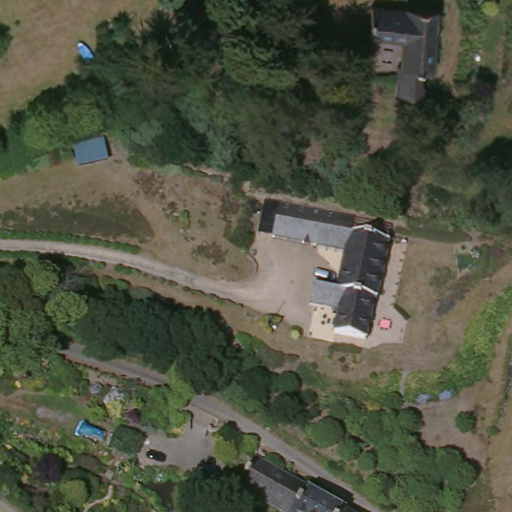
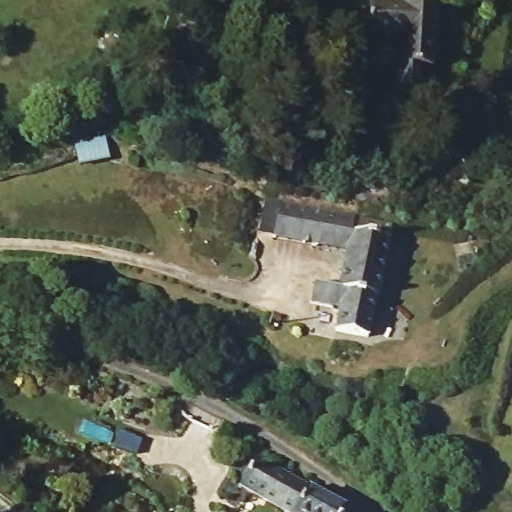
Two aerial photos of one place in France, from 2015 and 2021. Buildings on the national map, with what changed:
unchanged [(434,5),(431,63),(421,63),(421,94),(393,92),(395,39),(369,37),(371,2),(434,5)]
unchanged [(114,164),(81,166),(81,141),(109,137),(114,164)]
unchanged [(359,219),(357,229),(391,236),(370,334),(338,329),(341,310),(309,305),(314,277),(346,283),(351,249),(274,234),(281,202),(359,219)]
unchanged [(255,453),(356,512),(292,512),(239,481),(255,453)]

